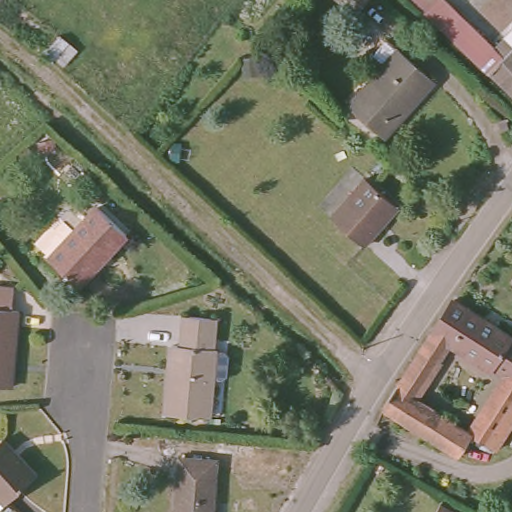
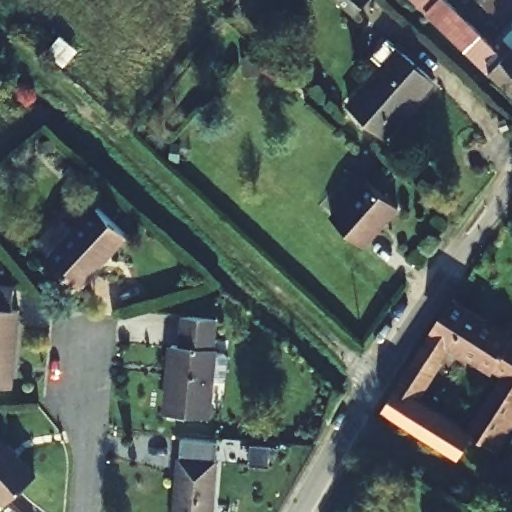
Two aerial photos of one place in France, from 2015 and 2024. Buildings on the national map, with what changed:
unchanged [(346,0),(369,0),(358,11),(346,0)]
unchanged [(509,109),(406,1),(407,0),(446,0),(498,53),(512,41),(512,106),(509,109)]
unchanged [(380,43),(426,85),(377,142),(343,112),(376,72),(365,62),(380,43)]
unchanged [(328,220),(363,179),(396,206),(360,247),(328,220)]
unchanged [(53,264),(102,211),(130,239),(82,291),(53,264)]
unchanged [(3,321),(12,321),(10,372),(5,372),(3,397),(0,397),(0,299),(4,299),(3,321)]
unchanged [(485,325),(490,317),(512,330),(512,418),(498,440),(492,437),(486,446),(492,449),(478,472),(469,468),(456,487),(435,474),(447,454),(381,412),(420,352),(429,336),(449,305),(485,325)]
unchanged [(165,345),(172,345),(175,317),(210,319),(203,417),(161,414),(165,345)]
unchanged [(36,472),(0,509),(0,439),(2,437),(36,472)]
unchanged [(210,462),(206,512),(166,512),(170,459),(210,462)]
unchanged [(458,512),(441,512),(445,504),(458,512)]

